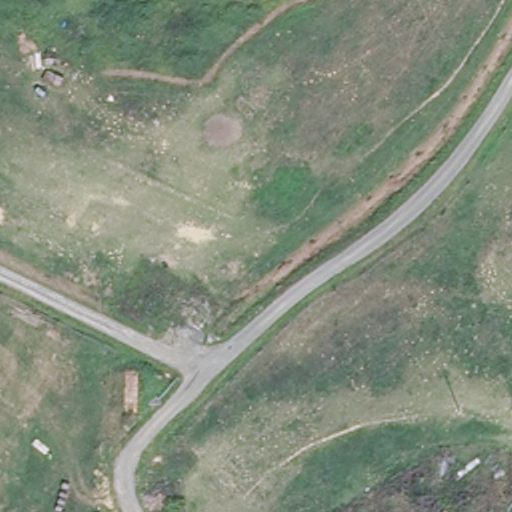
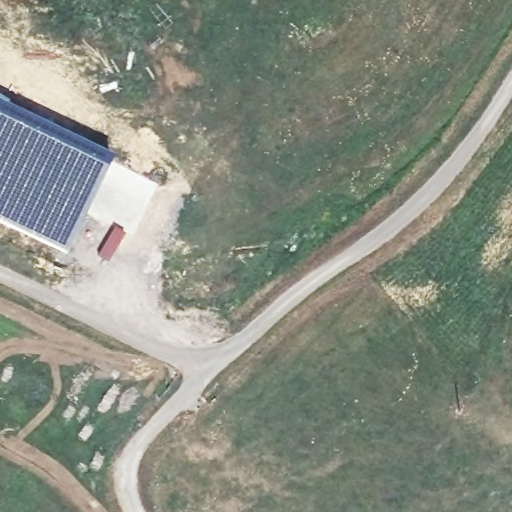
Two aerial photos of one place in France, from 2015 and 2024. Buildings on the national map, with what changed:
new [(27,117),(114,162),(100,196),(67,255),(0,222),(0,105),(27,117)]
new [(114,162),(157,185),(145,210),(137,205),(140,182),(131,179),(124,191),(119,199),(110,198),(100,196),(114,162)]

